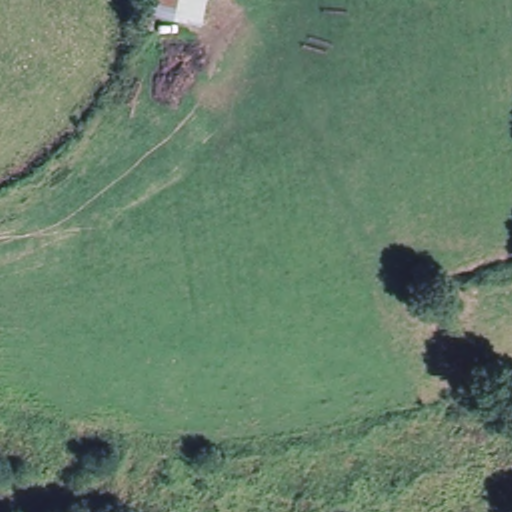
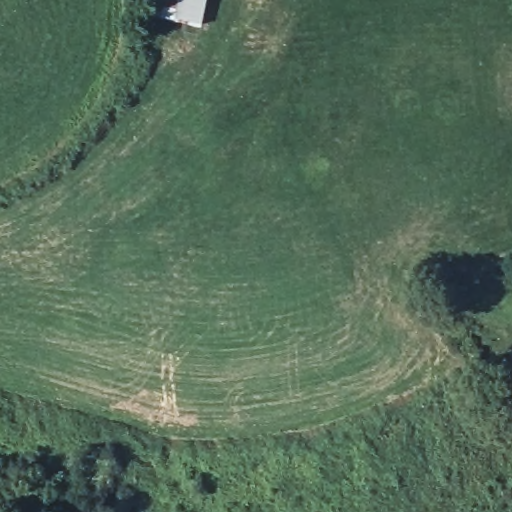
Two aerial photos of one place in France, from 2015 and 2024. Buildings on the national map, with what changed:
unchanged [(143,0),(203,0),(199,18),(141,8),(143,0)]

